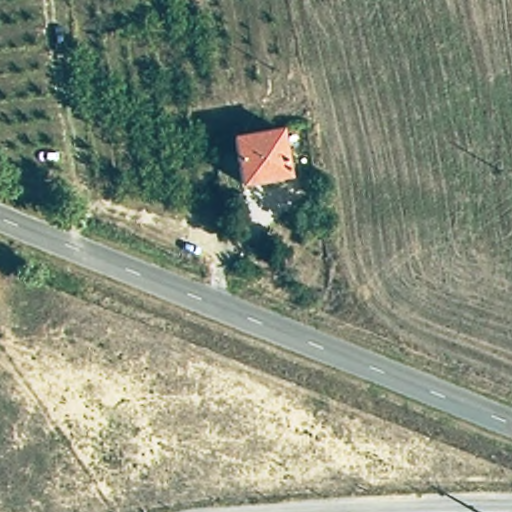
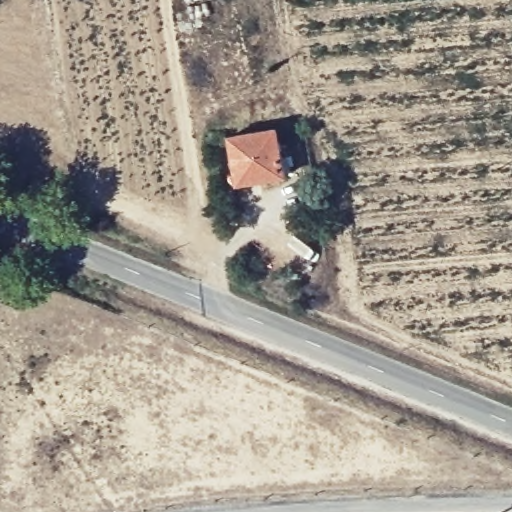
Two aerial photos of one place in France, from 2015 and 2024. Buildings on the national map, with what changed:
unchanged [(286,175),(237,184),(229,135),(277,127),(286,175)]

